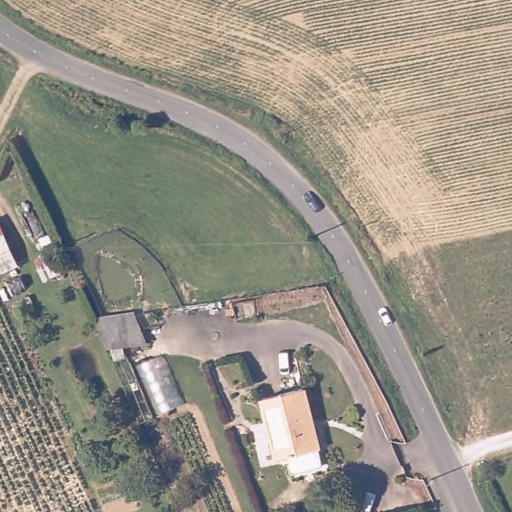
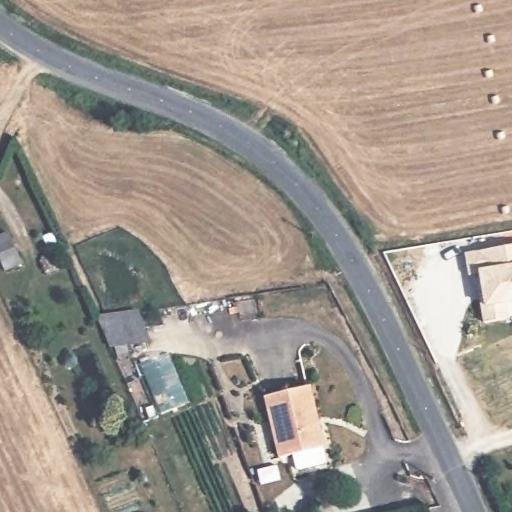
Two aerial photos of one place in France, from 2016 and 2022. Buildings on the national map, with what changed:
unchanged [(19,262),(32,287),(17,293),(20,300),(9,305),(0,286),(0,214),(19,262)]
new [(506,317),(481,320),(472,272),(467,273),(464,253),(512,244),(512,302),(504,303),(506,317)]
unchanged [(143,310),(155,344),(112,353),(97,317),(143,310)]
unchanged [(304,384),(322,465),(293,471),(289,455),(277,457),(261,393),(304,384)]

